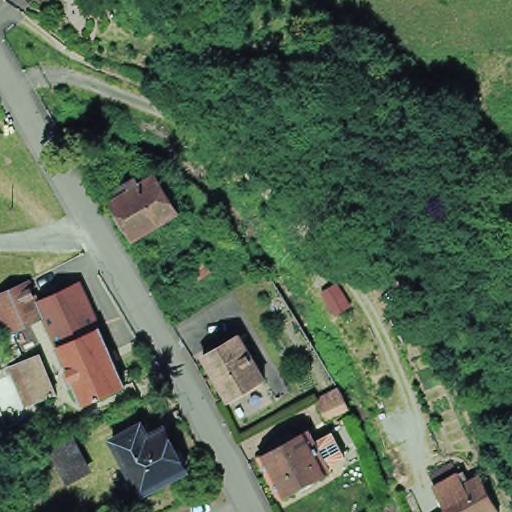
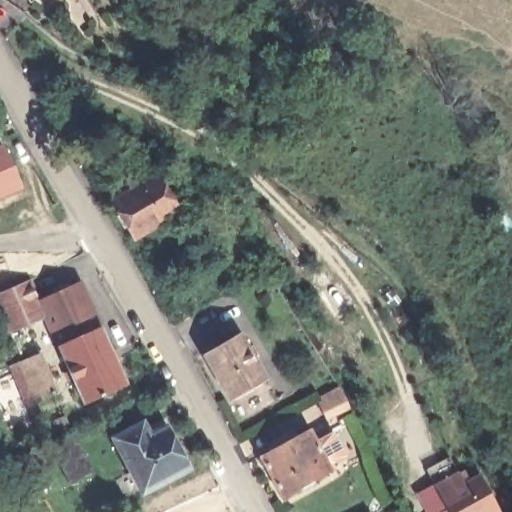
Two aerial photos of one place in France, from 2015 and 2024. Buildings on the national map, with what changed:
new [(22,190),(0,200),(0,145),(1,144),(22,190)]
unchanged [(162,171),(170,161),(180,169),(172,179),(162,171)]
unchanged [(145,176),(156,169),(178,207),(135,233),(113,196),(128,187),(127,186),(132,183),(129,178),(136,173),(140,178),(145,175),(145,176)]
unchanged [(200,273),(193,262),(204,254),(211,265),(200,273)]
unchanged [(4,335),(0,329),(0,315),(5,313),(0,302),(0,287),(32,273),(40,297),(87,262),(130,354),(120,359),(130,378),(81,400),(40,313),(4,335)]
unchanged [(216,342),(222,339),(225,344),(228,343),(241,335),(248,348),(255,360),(266,379),(262,381),(261,382),(235,398),(230,401),(204,357),(220,348),(216,342)]
unchanged [(10,357),(17,354),(20,352),(40,344),(56,385),(36,393),(27,396),(10,357)]
unchanged [(317,396),(338,384),(340,383),(343,391),(350,404),(349,404),(326,416),(317,396)]
unchanged [(140,486),(131,468),(126,460),(113,435),(143,420),(145,424),(150,432),(161,426),(165,423),(177,445),(178,444),(183,446),(189,456),(187,462),(186,462),(188,466),(142,490),(140,486)]
unchanged [(330,467),(315,476),(313,482),(304,487),(298,486),(298,485),(282,493),(261,453),(275,446),(272,439),(292,428),(295,434),(309,427),(330,467)]
unchanged [(85,469),(68,478),(49,441),(71,429),(80,447),(90,466),(85,469)]
unchanged [(455,512),(440,482),(441,481),(436,472),(458,460),(463,469),(470,481),(486,472),(506,509),(501,512),(455,512)]

